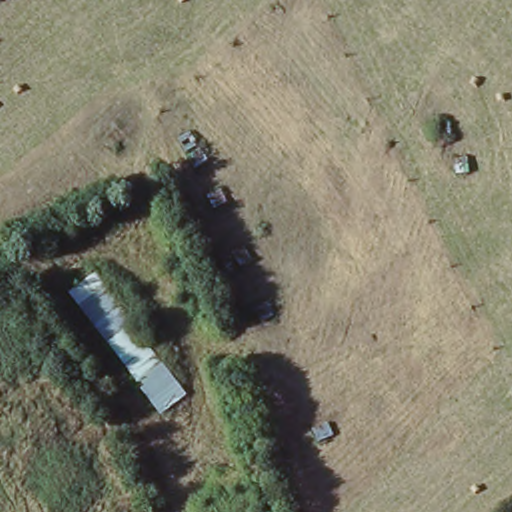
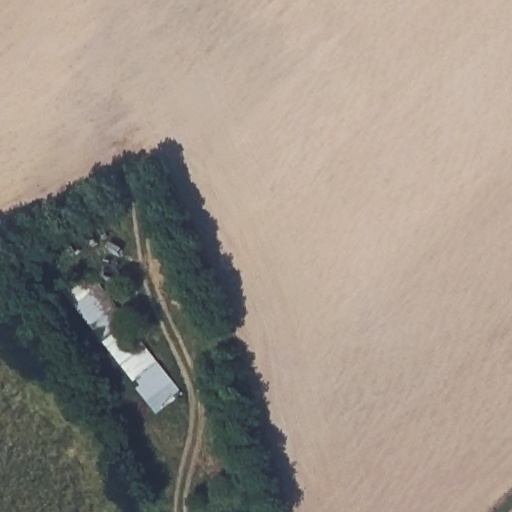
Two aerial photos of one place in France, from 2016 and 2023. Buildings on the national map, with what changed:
unchanged [(69,294),(95,273),(185,394),(161,415),(69,294)]

